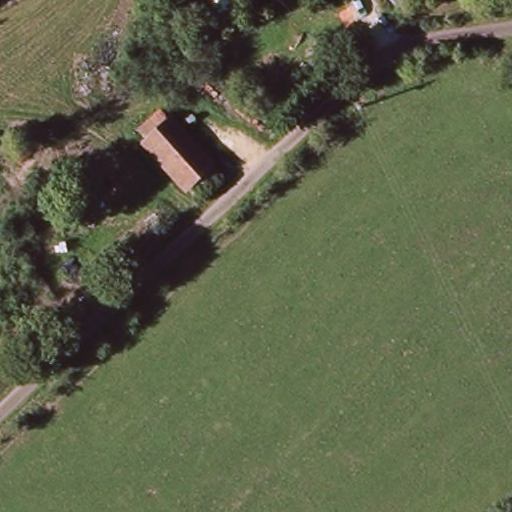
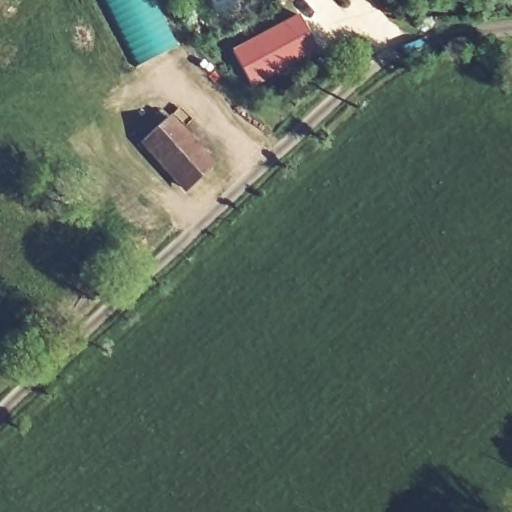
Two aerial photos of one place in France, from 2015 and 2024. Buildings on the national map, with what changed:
new [(140,65),(107,0),(157,0),(179,44),(140,65)]
unchanged [(391,11),(385,0),(403,0),(391,11)]
new [(319,53),(253,88),(232,51),(300,15),(319,53)]
unchanged [(138,129),(164,107),(212,161),(187,184),(138,129)]

